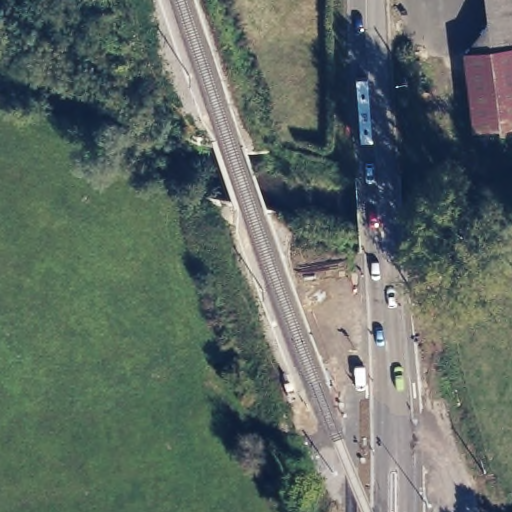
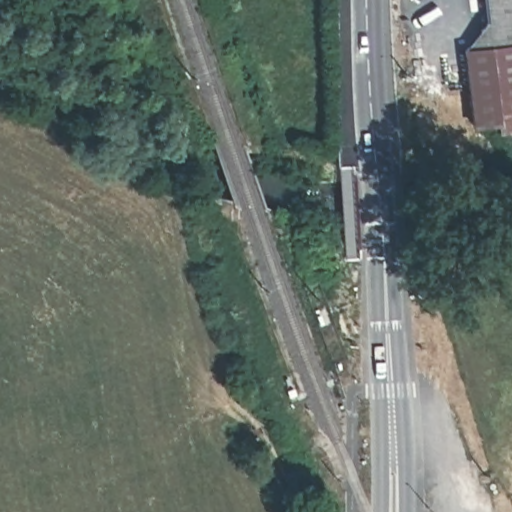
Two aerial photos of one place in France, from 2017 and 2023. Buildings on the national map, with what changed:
unchanged [(503,121),(472,124),(464,49),(489,19),(486,0),(512,0),(512,130),(505,130),(503,121)]
unchanged [(288,179),(290,171),(292,168),(320,179),(315,190),(295,181),(288,179)]

